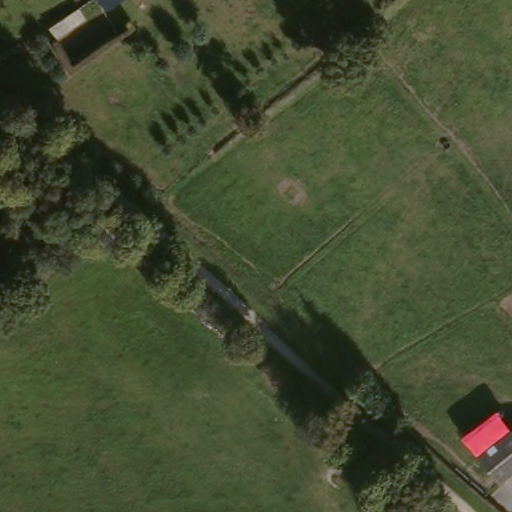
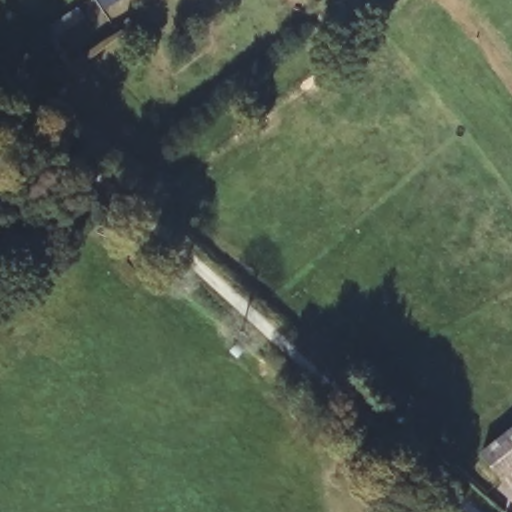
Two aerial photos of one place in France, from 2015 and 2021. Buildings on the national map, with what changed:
unchanged [(512,473),(491,449),(512,432),(512,473)]

